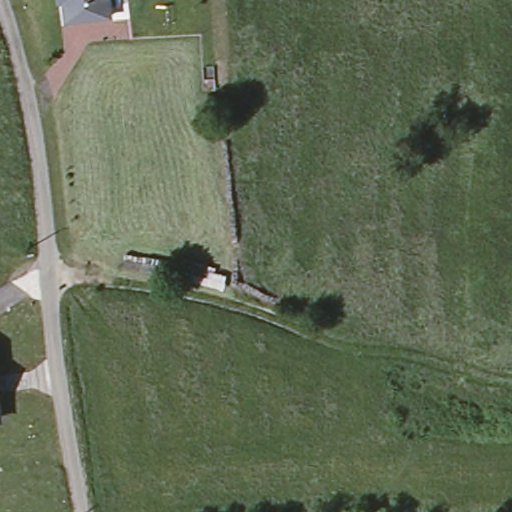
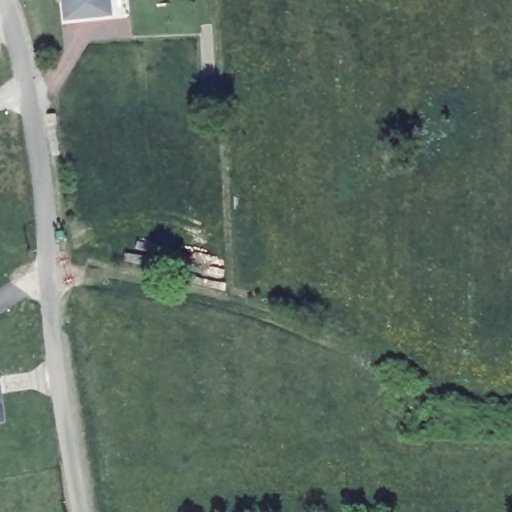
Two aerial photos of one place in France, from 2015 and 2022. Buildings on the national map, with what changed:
unchanged [(64,20),(63,0),(108,0),(109,17),(64,20)]
unchanged [(0,419),(0,388),(4,414),(0,419)]

